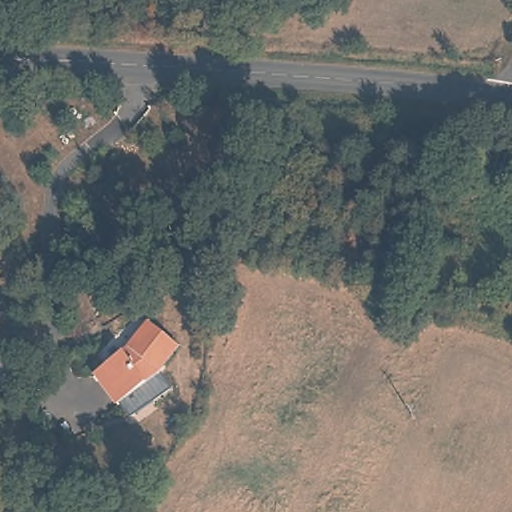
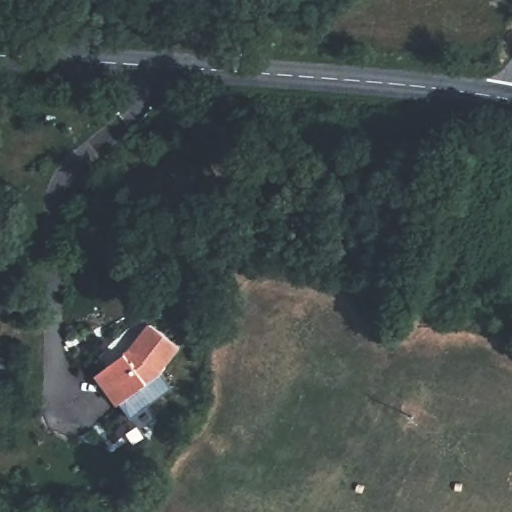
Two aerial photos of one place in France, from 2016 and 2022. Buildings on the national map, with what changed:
unchanged [(158,327),(187,350),(166,374),(167,377),(124,406),(103,376),(138,351),(158,327)]

